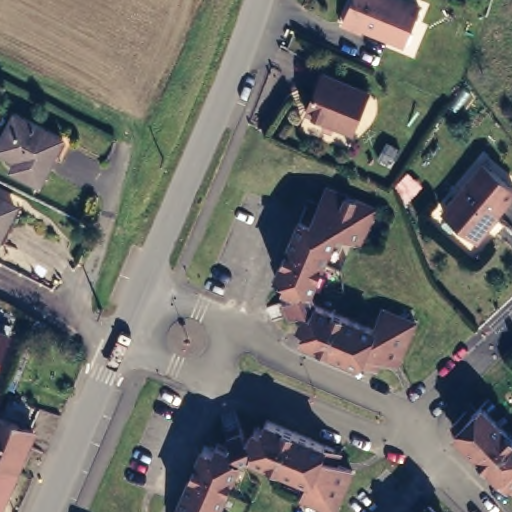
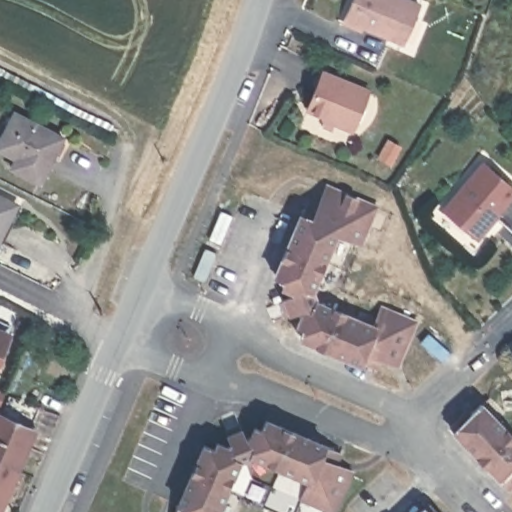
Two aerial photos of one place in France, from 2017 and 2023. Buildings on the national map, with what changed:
unchanged [(404,43),(363,24),(361,28),(344,21),(353,0),(409,0),(419,4),(404,43)]
unchanged [(364,90),(349,127),(331,119),(326,128),(319,125),(321,115),(303,108),(319,70),(364,90)]
unchanged [(46,171),(0,148),(0,144),(14,109),(68,136),(46,171)]
unchanged [(389,137),(401,144),(391,160),(379,154),(389,137)]
unchanged [(512,186),(512,195),(477,236),(444,208),(484,162),(512,186)]
unchanged [(366,361),(346,353),(307,337),(312,327),(304,323),(309,315),(306,308),(294,314),(287,301),(300,295),(298,290),(290,285),(292,279),(281,274),(307,215),(314,199),(326,204),(333,186),(381,207),(366,241),(342,231),(317,289),(322,301),(379,326),(388,307),(420,321),(402,363),(386,357),(381,368),(366,361)]
unchanged [(0,244),(0,201),(18,209),(2,244),(0,244)]
unchanged [(0,364),(0,332),(12,339),(0,364)]
unchanged [(4,408),(11,411),(18,393),(46,405),(21,464),(0,455),(0,389),(10,393),(4,408)]
unchanged [(460,431),(455,425),(472,410),(476,415),(487,404),(512,430),(512,484),(460,431)]
unchanged [(183,508),(209,449),(218,454),(222,447),(231,452),(237,449),(231,437),(245,430),(251,444),(256,441),(260,431),(267,434),(271,424),(331,449),(346,456),(341,467),(357,474),(341,512),(328,512),(307,503),(314,484),(256,460),(244,465),(224,512),(182,512),(183,508)]
unchanged [(0,503),(0,455),(21,464),(4,505),(0,503)]
unchanged [(435,507),(439,512),(432,512),(435,507)]

